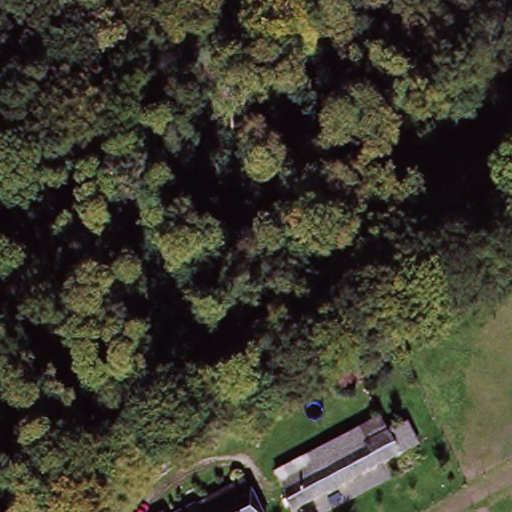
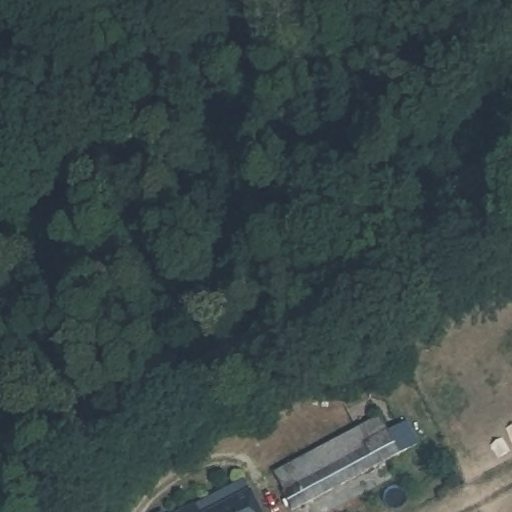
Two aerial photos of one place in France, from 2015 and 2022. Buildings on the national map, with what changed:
unchanged [(388,436),(406,427),(419,449),(301,512),(294,512),(271,477),(377,418),(388,436)]
unchanged [(248,496),(255,512),(217,512),(248,496)]
unchanged [(189,512),(184,512),(188,510),(189,512)]

